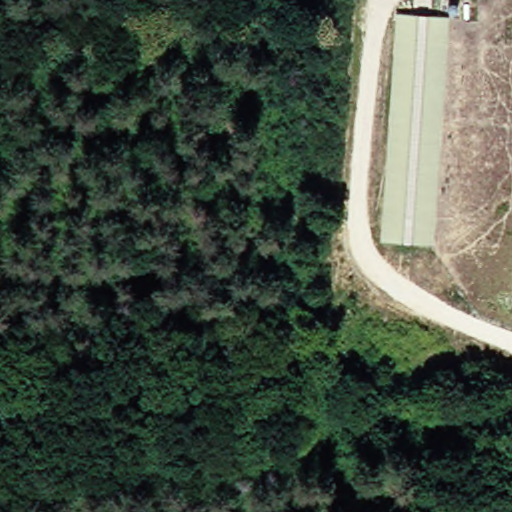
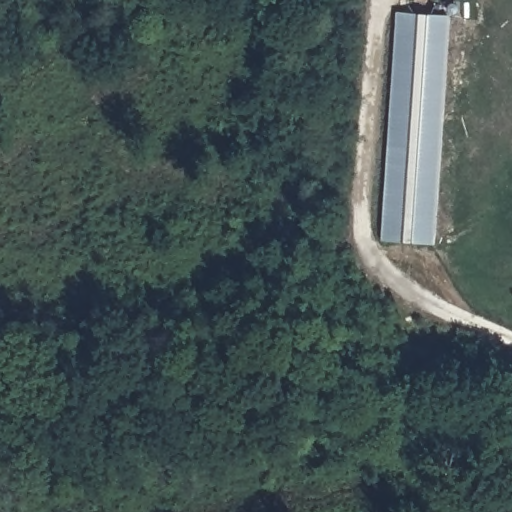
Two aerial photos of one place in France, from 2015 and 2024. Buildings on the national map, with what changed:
unchanged [(449,15),(433,245),(380,240),(394,12),(449,15)]

